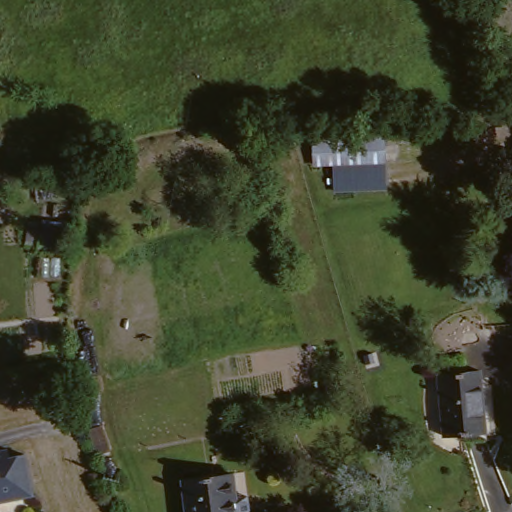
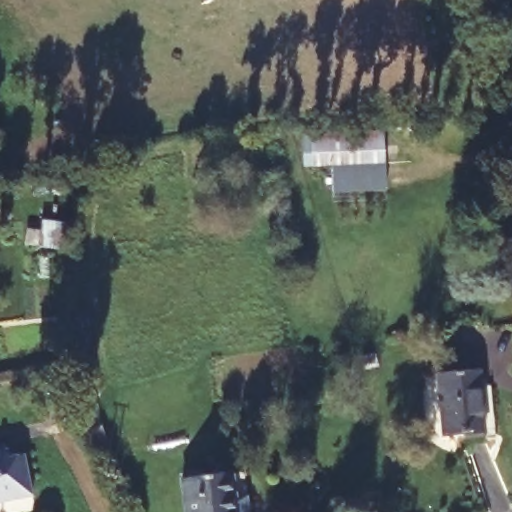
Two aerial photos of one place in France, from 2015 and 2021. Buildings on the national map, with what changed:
unchanged [(387,192),(335,194),(332,149),(385,146),(387,192)]
unchanged [(32,244),(19,242),(20,228),(33,230),(34,219),(54,220),(52,245),(32,244)]
unchanged [(59,374),(66,406),(51,409),(44,378),(59,374)]
unchanged [(443,376),(485,376),(483,439),(442,438),(443,376)]
unchanged [(92,426),(106,422),(116,449),(101,452),(92,426)]
unchanged [(5,449),(6,458),(22,455),(30,496),(0,502),(0,450),(5,449)]
unchanged [(237,504),(239,503),(240,512),(177,512),(174,482),(221,477),(225,501),(237,500),(237,504)]

